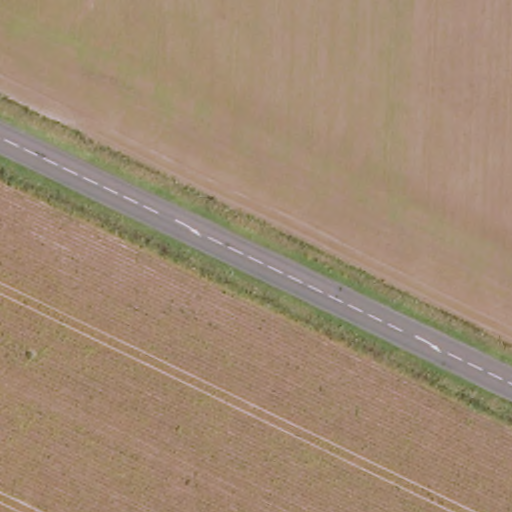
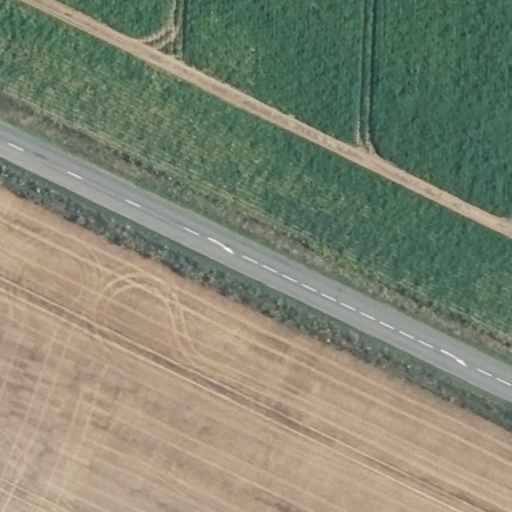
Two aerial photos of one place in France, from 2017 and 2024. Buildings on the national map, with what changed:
[]

